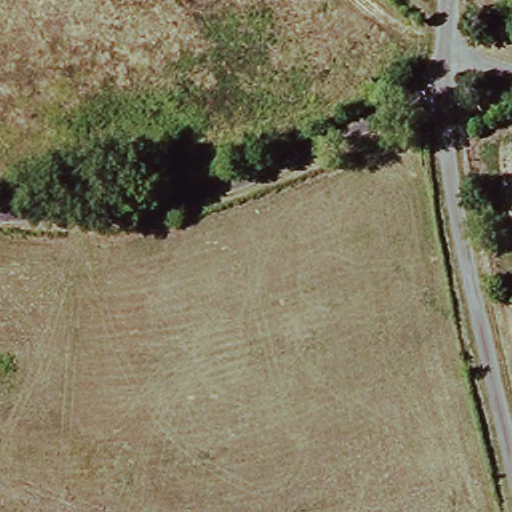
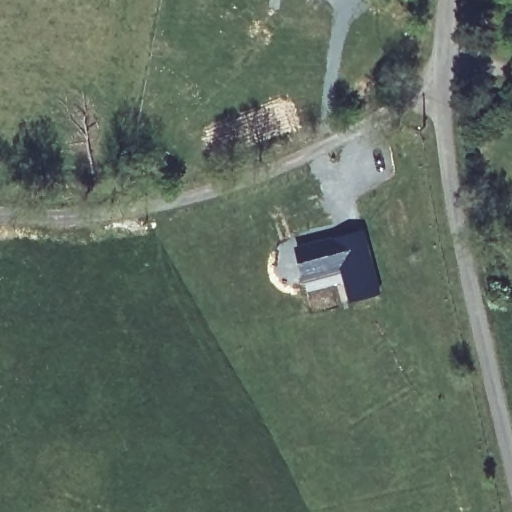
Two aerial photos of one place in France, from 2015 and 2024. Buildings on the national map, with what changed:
new [(296,241),(296,244),(362,230),(371,271),(343,281),(341,276),(296,287),(293,265),(294,264),(290,243),(296,241)]

